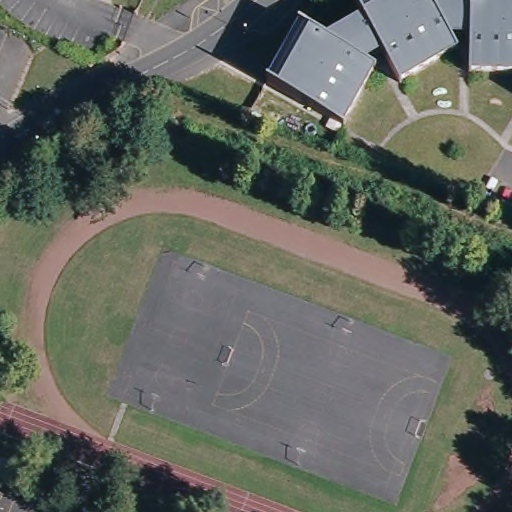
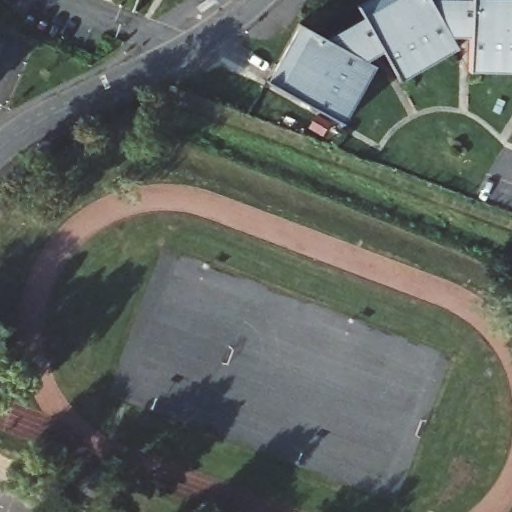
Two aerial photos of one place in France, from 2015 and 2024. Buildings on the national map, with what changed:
unchanged [(379,0),(434,0),(435,1),(456,37),(463,49),(404,82),(387,52),(369,20),(363,10),(379,0)]
unchanged [(512,0),(512,72),(475,72),(476,37),(476,2),(476,0),(512,0)]
unchanged [(476,2),(476,37),(456,37),(435,1),(476,2)]
unchanged [(369,20),(387,52),(371,62),(333,41),(369,20)]
unchanged [(380,67),(348,126),(275,85),(307,27),(333,41),(371,62),(380,67)]

